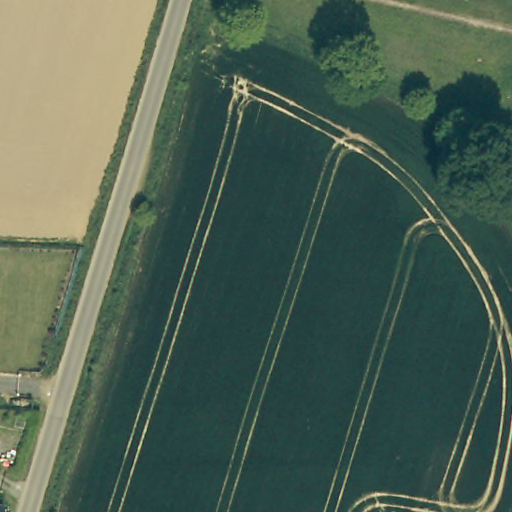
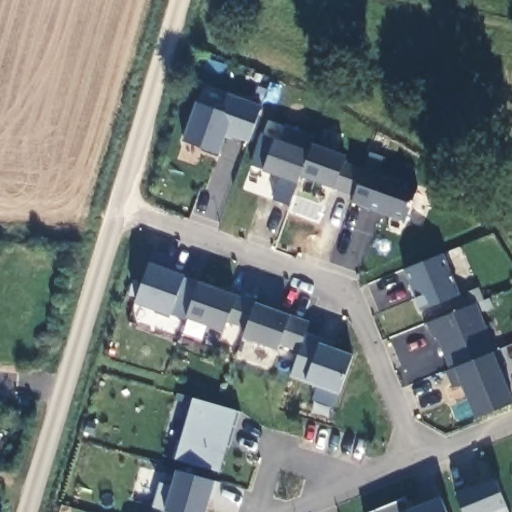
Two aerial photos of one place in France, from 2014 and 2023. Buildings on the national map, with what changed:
new [(248,142),(227,134),(220,154),(183,142),(196,102),(221,111),(227,94),(262,106),(248,142)]
new [(405,222),(352,204),(355,196),(334,189),(300,177),(298,183),(290,206),(272,200),(281,177),(263,170),(250,165),(262,134),(275,137),(280,140),(285,125),(315,136),(312,143),(346,157),(366,166),(370,153),(383,158),(380,172),(418,186),(405,222)]
new [(155,250),(175,257),(171,271),(185,276),(199,283),(235,297),(256,302),(285,313),(286,312),(310,322),(306,332),(331,342),(331,347),(353,355),(340,395),(334,407),(312,401),(317,387),(306,382),(290,377),(301,349),(282,340),(277,350),(244,338),(248,327),(229,321),(225,332),(187,317),(171,316),(135,303),(155,250)]
new [(461,296),(422,311),(403,270),(443,254),(461,296)]
new [(503,366),(500,368),(512,398),(512,402),(475,418),(461,384),(452,388),(445,372),(454,369),(437,336),(431,338),(426,324),(476,303),(503,366)]
new [(230,447),(227,446),(220,473),(175,460),(193,398),(240,412),(230,447)]
new [(207,507),(206,512),(169,512),(165,511),(152,509),(159,483),(172,483),(176,471),(216,481),(221,482),(213,511),(207,507)]
new [(463,512),(455,495),(495,479),(507,512),(463,512)]
new [(410,509),(440,497),(446,512),(370,512),(405,498),(410,509)]

